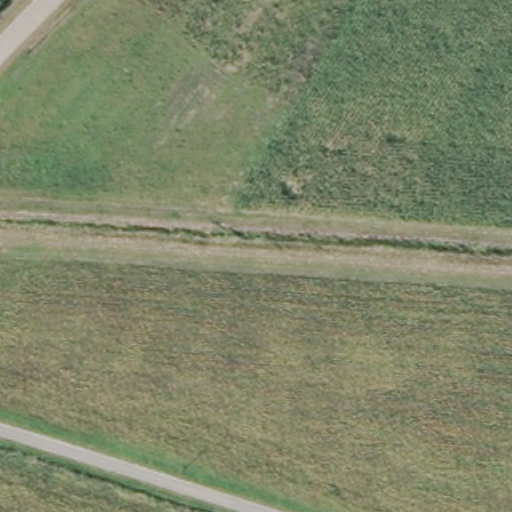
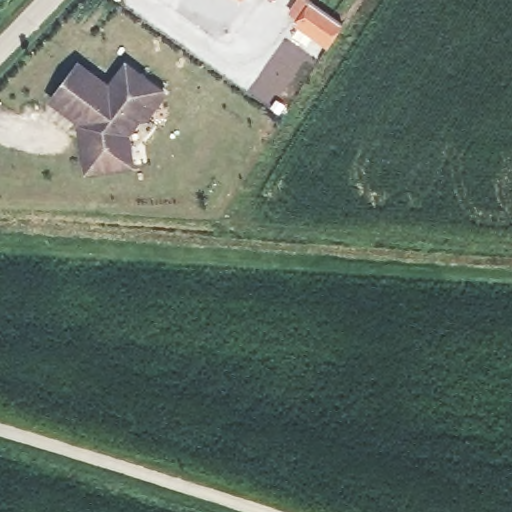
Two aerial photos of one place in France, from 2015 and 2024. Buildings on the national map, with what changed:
new [(342,28),(328,48),(294,26),(296,23),(289,18),(300,1),(342,28)]
new [(48,101),(76,65),(104,87),(105,91),(124,66),(134,73),(162,95),(144,121),(136,120),(125,135),(129,167),(83,173),(79,145),(76,123),(48,101)]

